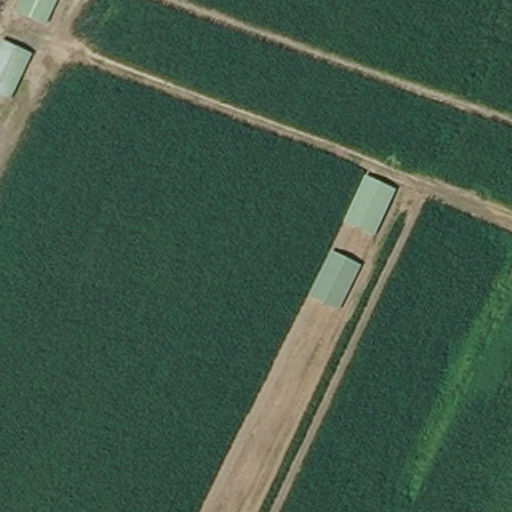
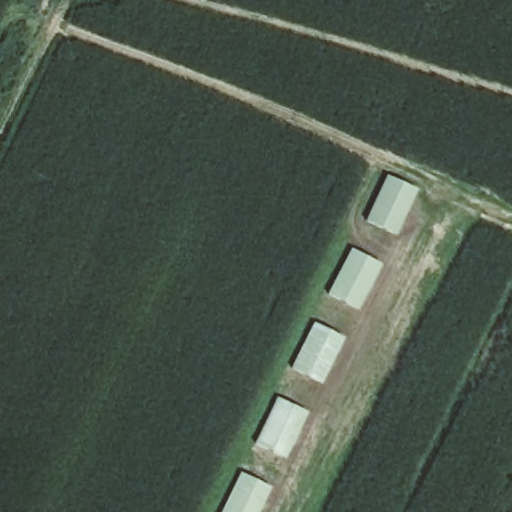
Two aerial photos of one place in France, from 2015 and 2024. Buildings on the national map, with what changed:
new [(395,235),(365,221),(385,175),(416,189),(395,235)]
new [(356,310),(326,294),(350,248),(380,263),(356,310)]
new [(320,383),(290,369),(312,322),(342,337),(320,383)]
new [(284,458),(253,443),(275,397),(306,412),(284,458)]
new [(255,512),(218,512),(238,472),(268,486),(255,512)]

